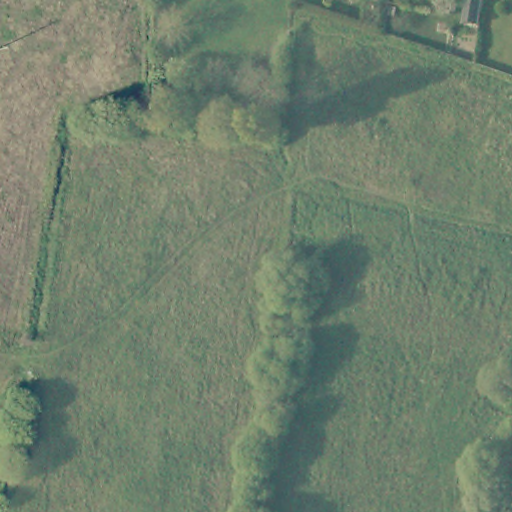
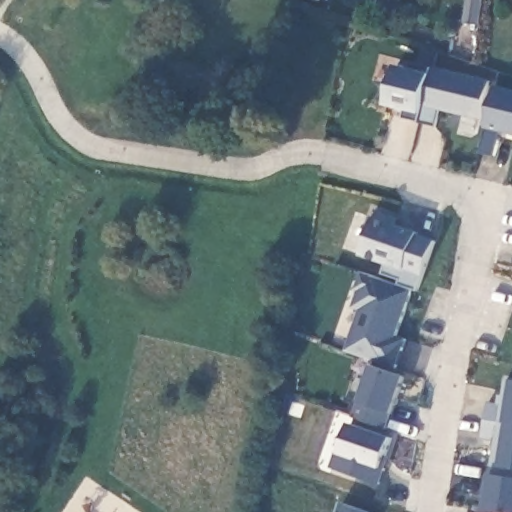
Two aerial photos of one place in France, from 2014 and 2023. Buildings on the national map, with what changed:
demolished [(482,38),(487,4),(503,6),(498,41),(482,38)]
new [(480,119),(438,111),(434,125),(403,118),(406,109),(386,103),(397,65),(431,73),(433,65),(488,82),(480,119)]
new [(492,157),(479,154),(485,128),(494,85),(512,89),(512,134),(499,131),(492,157)]
new [(375,215),(378,216),(380,212),(401,218),(398,225),(417,232),(416,234),(435,240),(417,290),(399,284),(402,278),(381,272),(385,262),(361,255),(375,215)]
new [(393,344),(401,347),(395,367),(347,351),(361,309),(353,306),(358,290),(356,289),(362,273),(412,291),(393,344)]
new [(372,365),(405,376),(387,428),(353,416),(372,365)]
new [(495,440),(481,438),(486,402),(506,406),(510,380),(512,380),(512,468),(490,465),(495,440)]
new [(489,475),(512,478),(512,512),(510,512),(484,509),(489,475)]

